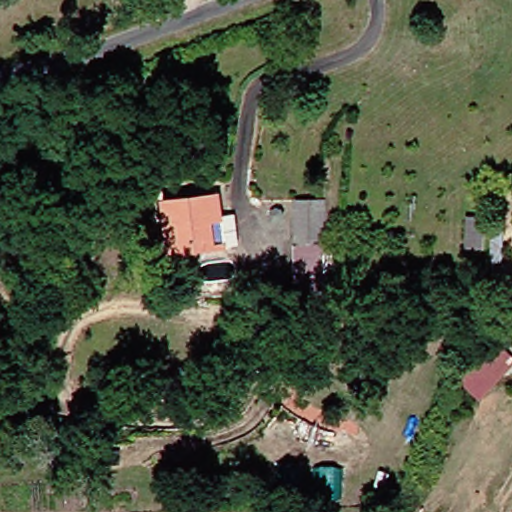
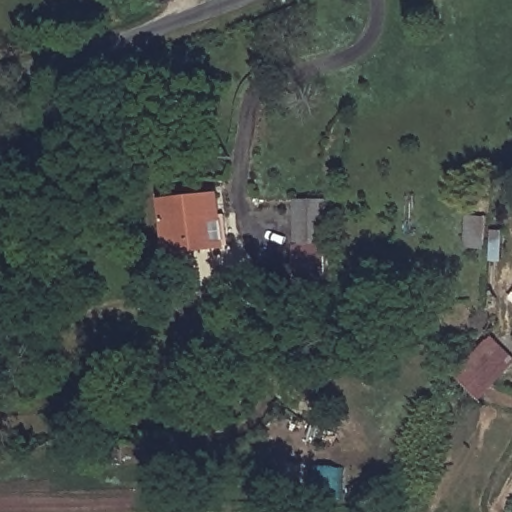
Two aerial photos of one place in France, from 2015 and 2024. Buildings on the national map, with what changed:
unchanged [(291,287),(289,239),(292,238),(292,198),(324,197),(325,229),(335,229),(335,238),(320,238),(322,287),(291,287)]
unchanged [(205,252),(170,256),(164,205),(212,199),(214,221),(218,250),(205,252)]
unchanged [(460,243),(462,207),(478,208),(477,244),(460,243)]
unchanged [(512,288),(512,305),(504,296),(512,288)]
unchanged [(490,343),(510,365),(473,400),(455,379),(490,343)]

